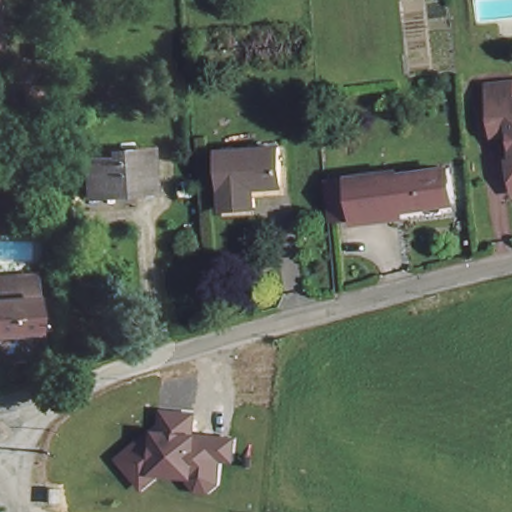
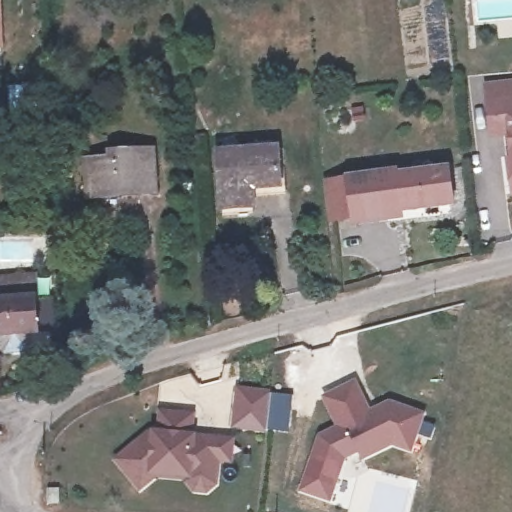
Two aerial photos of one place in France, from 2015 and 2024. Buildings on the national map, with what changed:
unchanged [(506,160),(510,160),(510,134),(486,135),(482,82),(512,82),(512,186),(507,186),(506,160)]
unchanged [(286,188),(252,189),(253,204),(218,205),(213,143),(283,141),(286,188)]
unchanged [(83,193),(82,158),(114,157),(113,146),(150,145),(154,188),(83,193)]
unchanged [(458,162),(462,201),(343,217),(340,177),(458,162)]
unchanged [(0,333),(0,283),(2,283),(4,296),(45,294),(48,328),(0,333)]
new [(319,430),(338,422),(326,391),(357,379),(369,410),(390,402),(423,415),(408,450),(390,442),(360,455),(357,447),(341,453),(338,460),(332,474),(305,462),(311,448),(319,430)]
new [(242,387),(273,393),(266,429),(235,424),(242,387)]
unchanged [(229,459),(217,457),(213,481),(203,487),(192,485),(186,476),(187,471),(152,465),(151,470),(138,478),(118,449),(152,426),(162,427),(165,406),(195,412),(191,432),(220,437),(233,439),(229,459)]
demolished [(52,483),(52,470),(65,471),(65,483),(52,483)]
unchanged [(50,502),(50,490),(62,491),(62,503),(50,502)]

